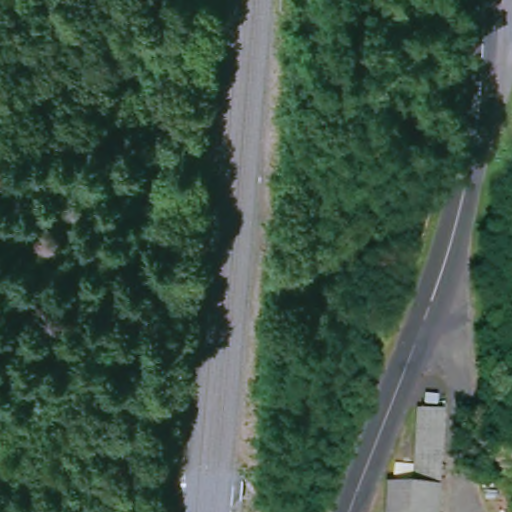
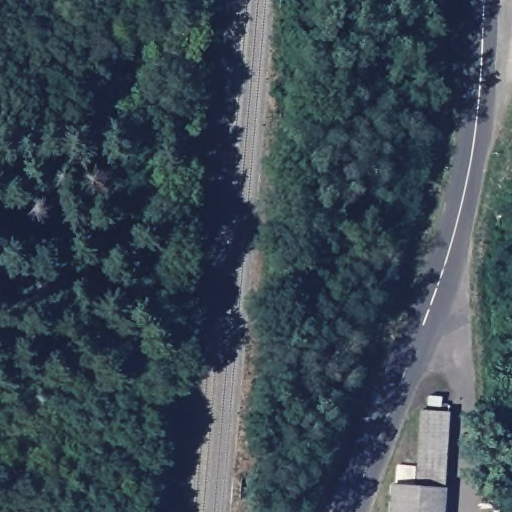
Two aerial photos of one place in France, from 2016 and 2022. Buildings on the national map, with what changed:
unchanged [(407,488),(410,488),(415,416),(415,414),(441,415),(440,418),(436,512),(383,512),(385,488),(390,488),(390,469),(407,470),(407,488)]

